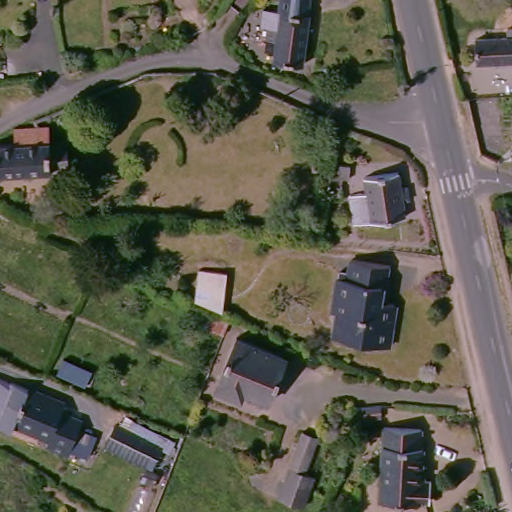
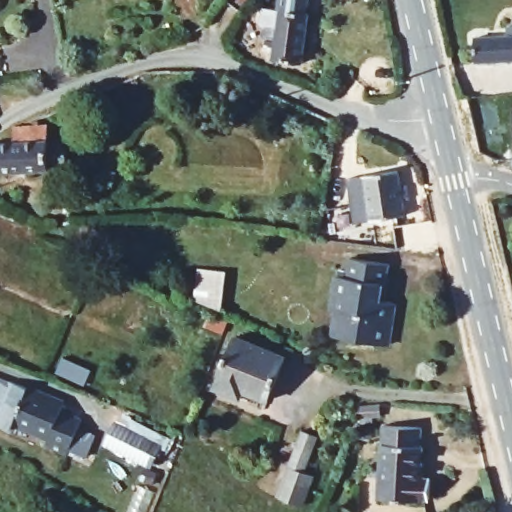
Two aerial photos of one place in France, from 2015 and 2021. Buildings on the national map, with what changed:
unchanged [(314,13),(308,65),(279,61),(281,40),(271,39),(273,26),(266,25),(268,9),(286,12),(286,10),(314,13)]
unchanged [(512,61),(475,61),(476,38),(506,38),(506,28),(512,28),(512,61)]
unchanged [(74,175),(0,179),(0,149),(19,148),(18,131),(40,130),(55,130),(56,145),(73,144),(74,175)]
unchanged [(414,194),(408,195),(410,212),(359,220),(354,191),(372,187),(370,172),(405,167),(407,182),(413,181),(414,194)]
unchanged [(404,305),(397,347),(344,338),(347,315),(341,313),(348,278),(358,281),(361,260),(401,266),(398,282),(399,282),(398,288),(392,287),(389,302),(404,305)]
unchanged [(226,268),(221,305),(221,307),(194,297),(194,296),(199,263),(226,268)]
unchanged [(229,317),(224,329),(204,322),(209,309),(229,317)]
unchanged [(286,360),(266,411),(216,390),(236,339),(286,360)]
unchanged [(92,372),(85,387),(57,374),(64,358),(92,372)]
unchanged [(74,406),(71,413),(92,422),(78,457),(55,447),(58,440),(24,425),(21,432),(3,425),(21,383),(74,406)]
unchanged [(156,468),(111,443),(128,422),(170,446),(156,468)]
unchanged [(429,448),(426,481),(436,481),(436,501),(426,501),(426,503),(384,501),(389,427),(426,429),(424,448),(429,448)]
unchanged [(278,498),(285,480),(303,432),(318,438),(305,474),(316,478),(311,491),(304,508),(278,498)]

